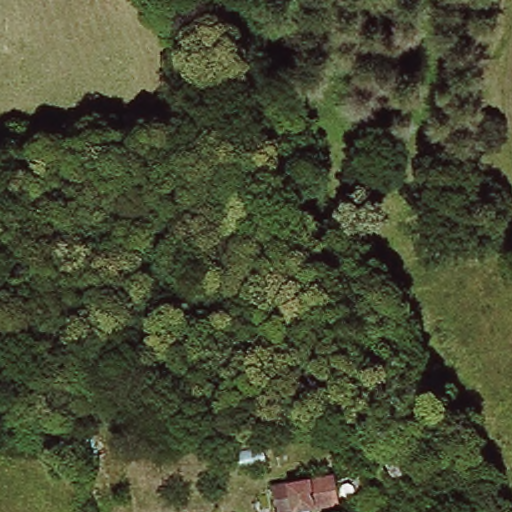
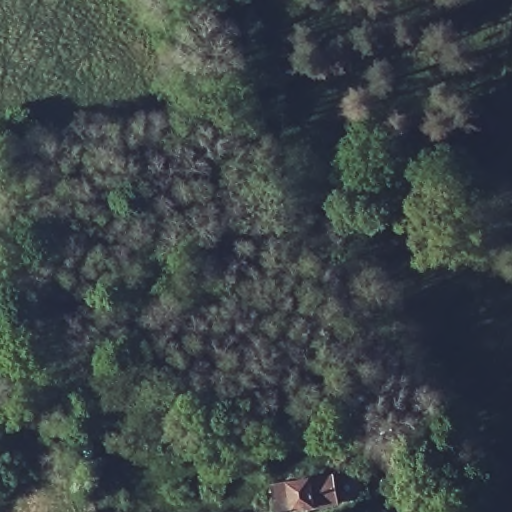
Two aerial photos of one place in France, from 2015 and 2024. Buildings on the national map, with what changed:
unchanged [(413,491),(394,495),(384,458),(404,454),(413,491)]
unchanged [(287,512),(286,482),(344,482),(345,512),(287,512)]

